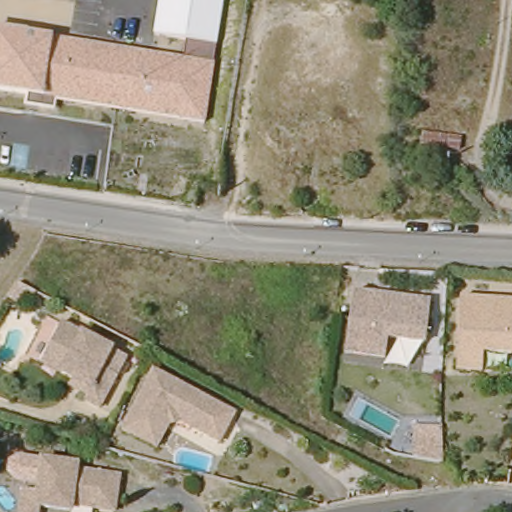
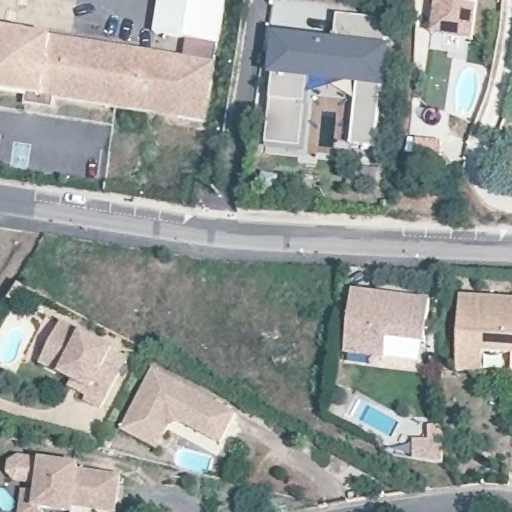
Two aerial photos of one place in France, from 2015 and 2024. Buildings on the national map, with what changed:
unchanged [(76,4),(51,0),(77,0),(76,4)]
unchanged [(158,0),(226,0),(219,46),(152,36),(158,0)]
new [(478,6),(473,41),(431,36),(436,1),(436,0),(479,0),(478,6)]
new [(385,44),(390,43),(386,87),(380,86),(374,146),(351,145),(356,85),(312,81),(310,104),(313,104),(308,155),(267,151),(274,77),(269,77),(273,32),(334,39),(336,12),(387,18),(385,44)]
unchanged [(212,61),(203,125),(0,96),(0,28),(212,61)]
new [(439,159),(414,157),(415,141),(440,144),(439,159)]
unchanged [(430,300),(423,369),(344,363),(354,292),(430,300)]
unchanged [(485,355),(483,373),(455,373),(461,296),(512,299),(512,356),(485,355)]
unchanged [(71,377),(55,368),(38,360),(46,345),(61,315),(116,343),(105,363),(120,370),(103,403),(88,395),(89,392),(76,385),(69,381),(71,377)]
unchanged [(148,431),(129,422),(160,362),(242,405),(235,419),(227,434),(211,426),(184,411),(178,413),(171,426),(164,440),(148,431)]
new [(409,437),(436,437),(436,473),(430,467),(409,464),(409,437)]
unchanged [(73,511),(42,505),(41,512),(23,512),(29,483),(34,484),(38,467),(45,469),(47,459),(81,465),(81,470),(123,478),(118,505),(117,512),(74,504),(73,511)]

